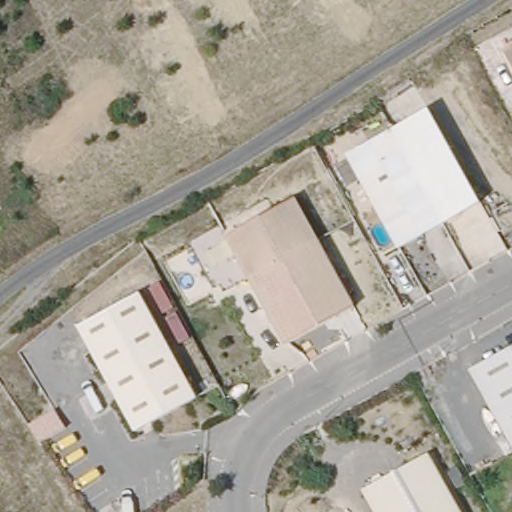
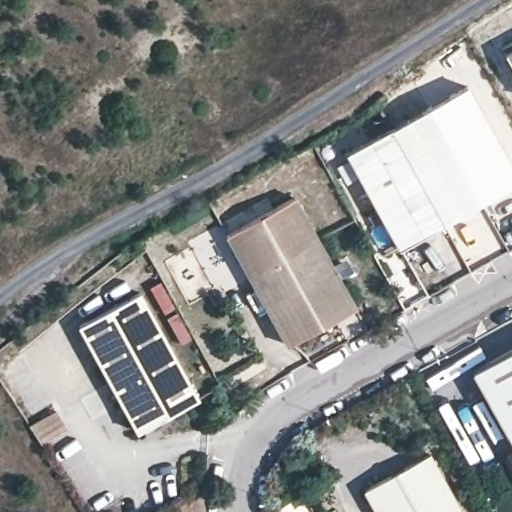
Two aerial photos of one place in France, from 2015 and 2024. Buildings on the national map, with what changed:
unchanged [(512,49),(512,54),(510,51),(512,49)]
new [(428,107),(467,86),(512,166),(512,185),(452,220),(425,169),(449,155),(428,107)]
unchanged [(398,120),(427,106),(449,155),(425,169),(398,120)]
unchanged [(398,120),(425,169),(452,220),(403,247),(348,147),(398,120)]
unchanged [(360,302),(291,341),(231,231),(300,192),(360,302)]
unchanged [(198,397),(137,431),(79,327),(139,292),(198,397)]
unchanged [(512,448),(471,376),(512,353),(512,448)]
unchanged [(383,512),(368,486),(434,448),(470,512),(383,512)]

